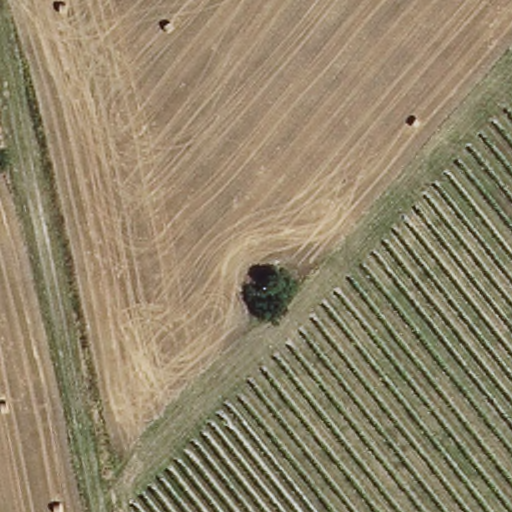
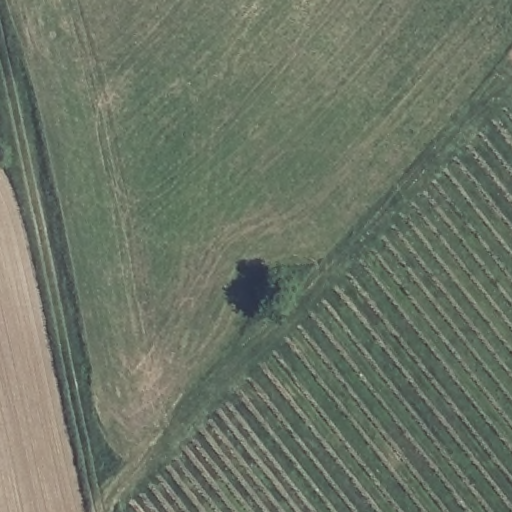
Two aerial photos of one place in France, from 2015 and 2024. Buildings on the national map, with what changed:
unchanged [(278,271),(293,292),(272,307),(257,286),(278,271)]

